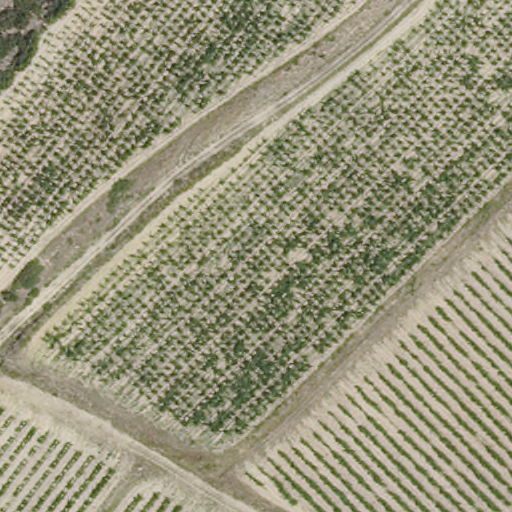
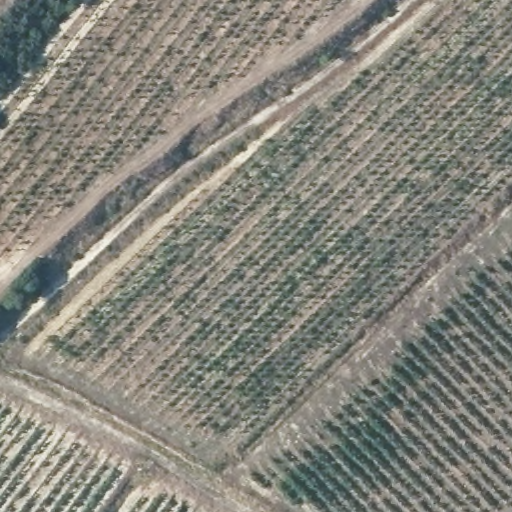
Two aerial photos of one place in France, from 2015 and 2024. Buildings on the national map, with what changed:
[]

